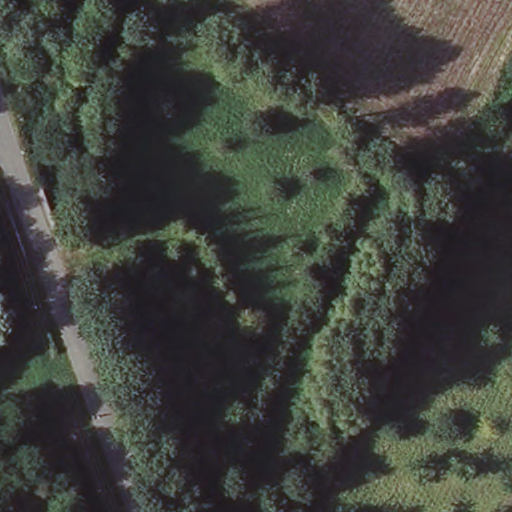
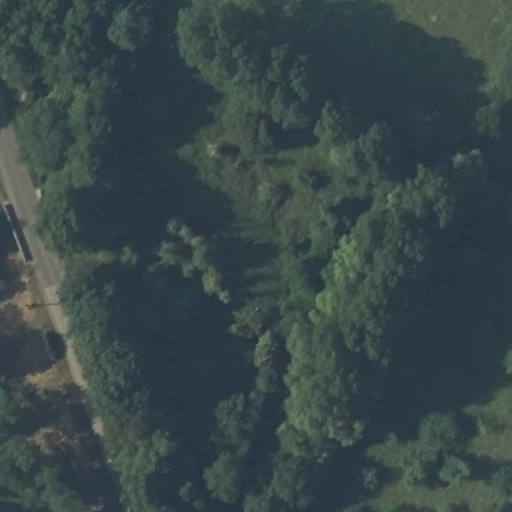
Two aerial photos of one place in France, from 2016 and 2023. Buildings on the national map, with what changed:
unchanged [(7,315),(0,317),(0,278),(1,278),(7,315)]
unchanged [(174,399),(202,463),(175,476),(149,412),(174,399)]

